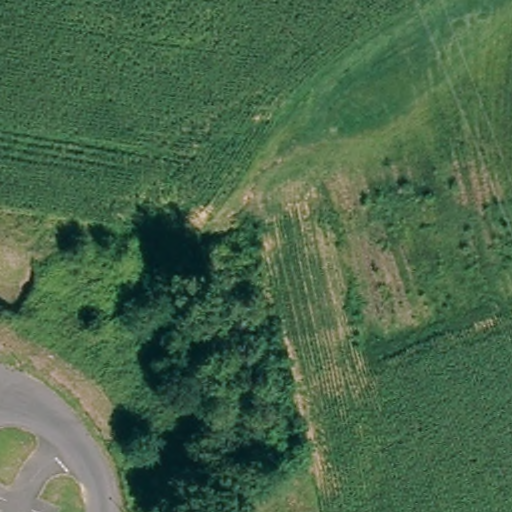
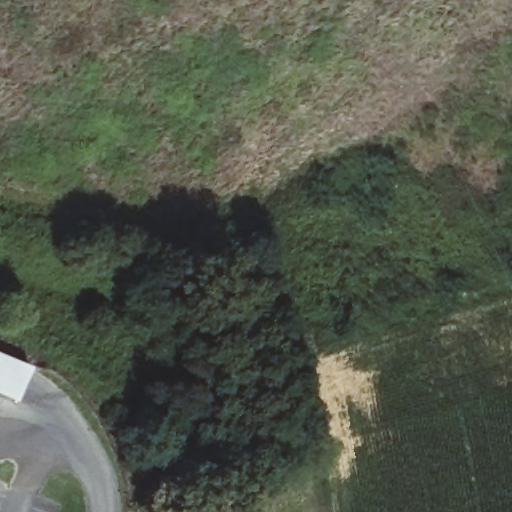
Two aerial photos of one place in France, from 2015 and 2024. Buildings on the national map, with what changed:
new [(26,366),(12,399),(0,394),(0,355),(26,366)]

